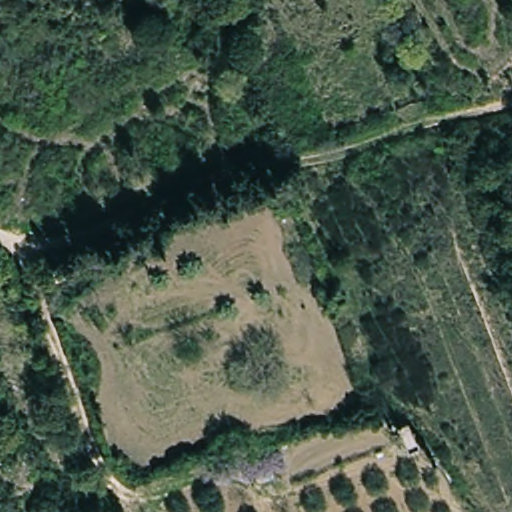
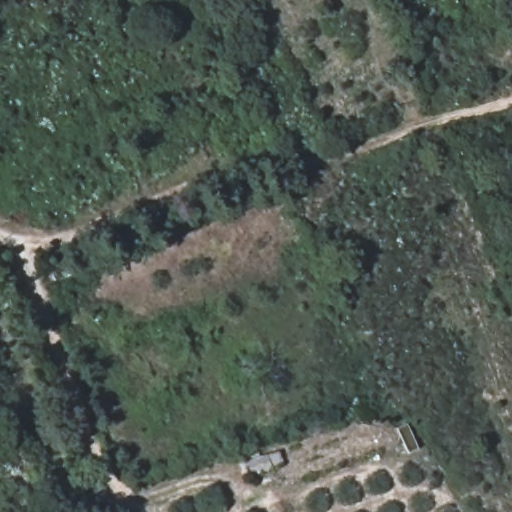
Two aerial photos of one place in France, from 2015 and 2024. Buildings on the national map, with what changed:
unchanged [(74,263),(78,280),(61,285),(58,269),(74,263)]
unchanged [(274,477),(247,485),(241,468),(269,458),(274,477)]

